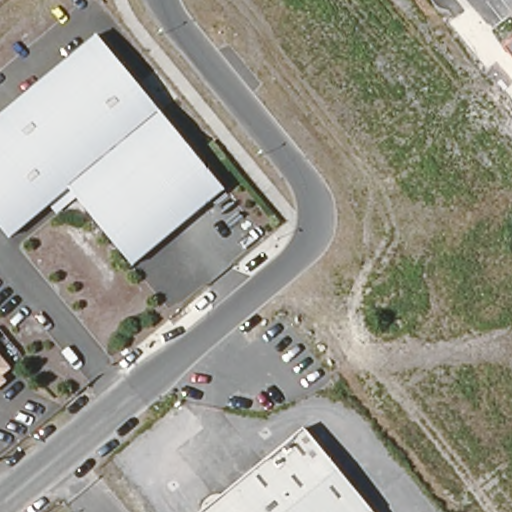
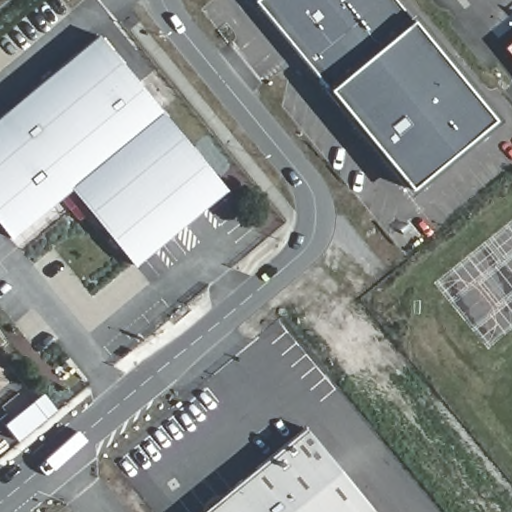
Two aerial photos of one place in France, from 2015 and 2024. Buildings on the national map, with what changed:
new [(252,0),(253,0),(396,0),(410,18),(325,89),(252,0)]
new [(325,89),(410,18),(493,119),(408,190),(325,89)]
unchanged [(51,202),(8,238),(0,229),(0,116),(5,111),(95,36),(223,189),(132,264),(131,265),(74,197),(58,210),(51,202)]
unchanged [(512,42),(512,55),(505,47),(512,42)]
unchanged [(0,383),(0,356),(9,366),(0,373),(5,378),(0,383)]
unchanged [(308,430),(376,512),(211,512),(235,491),(308,430)]

